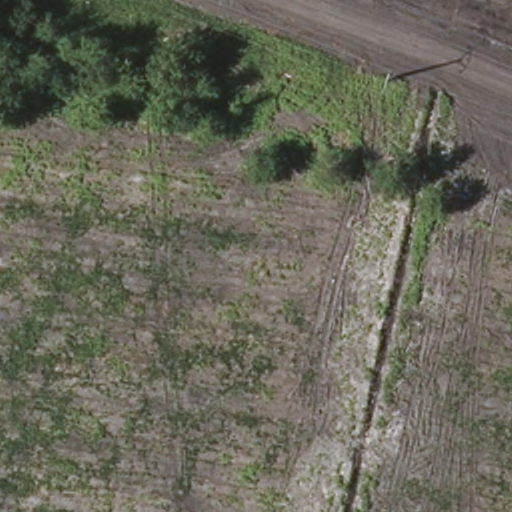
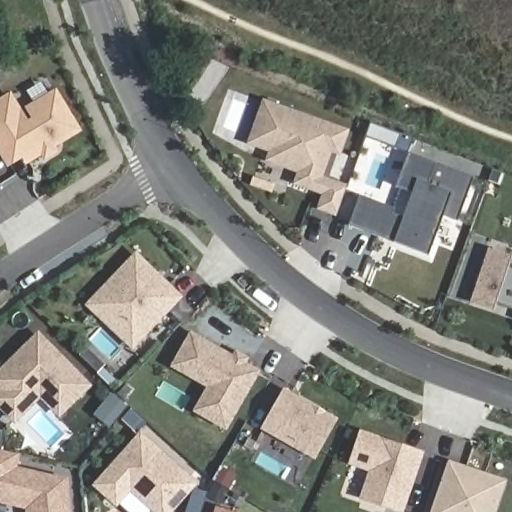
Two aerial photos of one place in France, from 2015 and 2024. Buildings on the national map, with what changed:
new [(56,147),(59,152),(45,161),(42,156),(26,165),(21,158),(8,167),(0,154),(0,99),(11,92),(21,109),(56,88),(82,132),(56,147)]
new [(339,156),(332,154),(323,176),(348,185),(336,216),(316,209),(321,196),(292,184),(296,173),(265,161),(268,152),(246,143),(263,98),(349,129),(339,156)]
new [(350,226),(360,196),(395,208),(393,214),(403,217),(411,194),(396,188),(408,154),(436,164),(429,183),(439,187),(446,167),(474,177),(458,221),(443,217),(429,256),(394,242),(350,226)]
new [(490,248),(512,255),(512,257),(509,265),(512,266),(512,310),(496,305),(494,311),(471,304),(490,248)]
new [(133,351),(84,305),(136,251),(183,297),(133,351)]
new [(60,419),(41,400),(16,425),(0,409),(0,367),(38,330),(93,385),(60,419)]
new [(192,411),(205,388),(169,367),(191,331),(233,356),(236,350),(250,358),(247,364),(260,371),(227,431),(192,411)]
new [(284,388),(337,419),(314,460),(261,429),(284,388)]
new [(393,512),(358,500),(368,472),(347,465),(360,429),(424,452),(404,512),(393,512)]
new [(175,512),(154,512),(131,493),(118,508),(93,485),(141,432),(198,483),(173,511),(175,512)]
new [(30,512),(29,505),(0,498),(0,450),(18,455),(15,469),(63,480),(66,512),(30,512)]
new [(506,481),(496,512),(433,512),(450,462),(506,481)]

